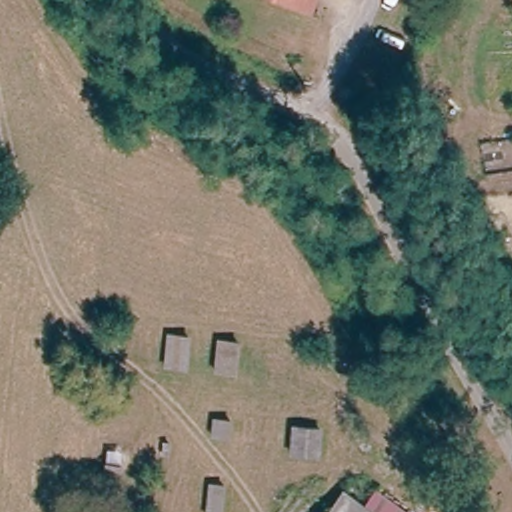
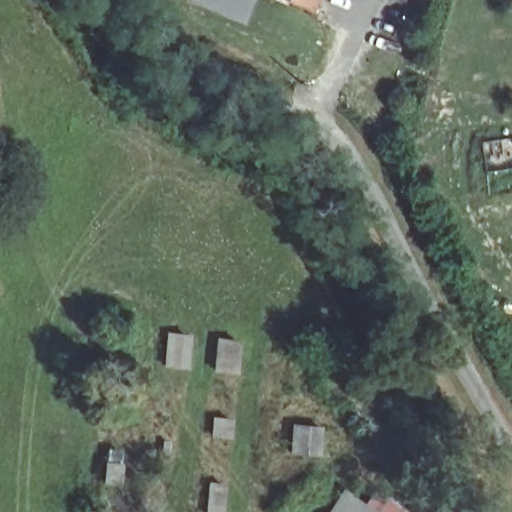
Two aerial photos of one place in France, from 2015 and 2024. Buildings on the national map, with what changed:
unchanged [(284,2),(284,0),(310,0),(305,11),(284,2)]
unchanged [(136,335),(134,348),(119,347),(121,331),(136,335)]
unchanged [(188,335),(185,363),(169,362),(172,333),(188,335)]
unchanged [(221,339),(242,340),(238,367),(217,365),(221,339)]
unchanged [(128,396),(126,412),(115,411),(115,395),(128,396)]
unchanged [(235,417),(234,432),(217,431),(218,416),(235,417)]
unchanged [(323,426),(320,451),(294,448),(296,423),(323,426)]
unchanged [(168,435),(166,446),(161,446),(160,435),(168,435)]
unchanged [(121,463),(120,480),(109,480),(109,462),(121,463)]
unchanged [(228,482),(225,512),(212,512),(215,482),(228,482)]
unchanged [(341,492),(368,512),(327,512),(341,492)]

